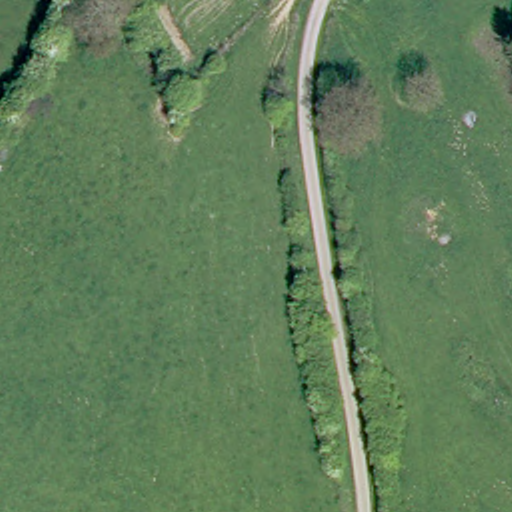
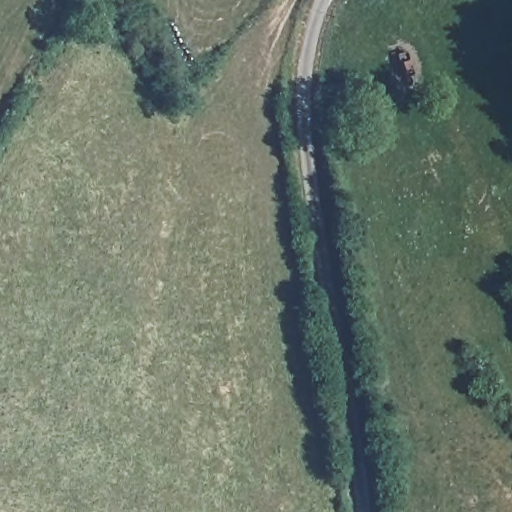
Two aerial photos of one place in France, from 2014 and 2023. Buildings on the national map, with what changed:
[]

